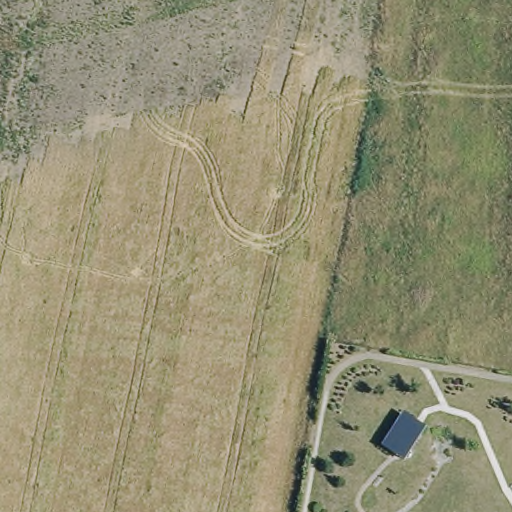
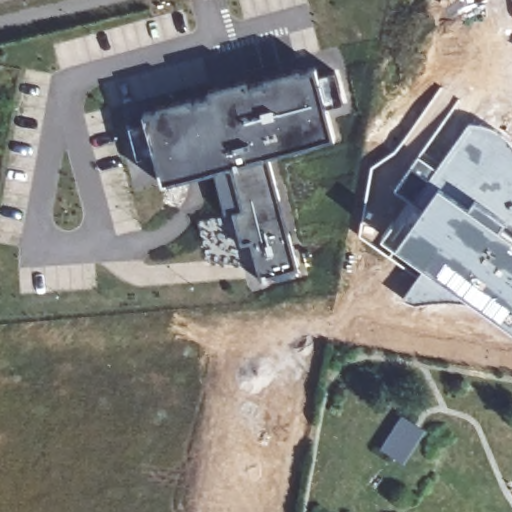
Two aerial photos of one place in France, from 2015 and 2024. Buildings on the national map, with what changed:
new [(313,64),(333,135),(265,152),(297,266),(260,276),(250,241),(240,243),(231,203),(238,201),(227,163),(160,179),(143,110),(313,64)]
new [(415,301),(404,297),(425,266),(382,236),(408,198),(395,188),(419,154),(437,167),(469,122),(477,122),(495,128),(504,135),(512,145),(512,329),(469,297),(415,301)]
unchanged [(402,414),(425,428),(405,462),(382,448),(402,414)]

